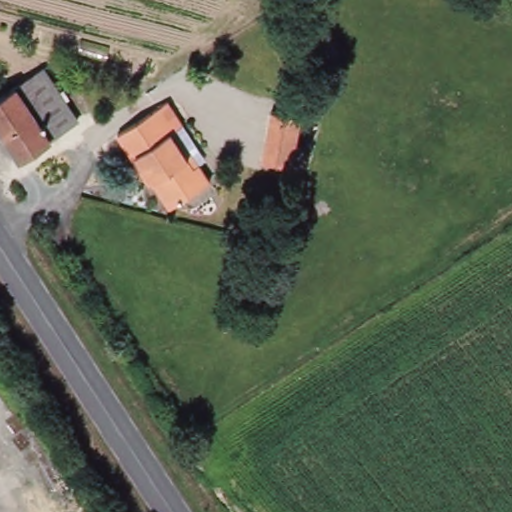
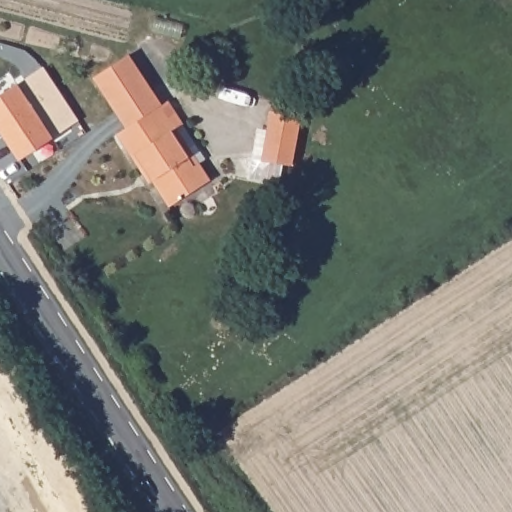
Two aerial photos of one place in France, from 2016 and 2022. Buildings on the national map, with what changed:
new [(161,104),(125,129),(93,79),(130,54),(161,104)]
unchanged [(23,160),(0,122),(0,104),(50,71),(82,124),(23,160)]
unchanged [(207,160),(201,164),(210,180),(170,207),(155,182),(149,183),(118,134),(169,100),(207,160)]
unchanged [(293,168),(262,160),(271,110),(302,117),(293,168)]

